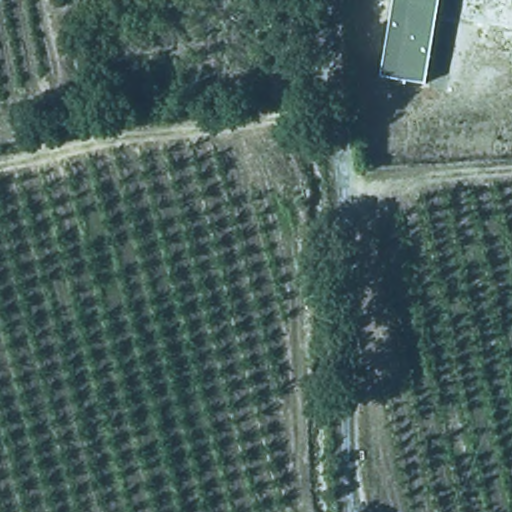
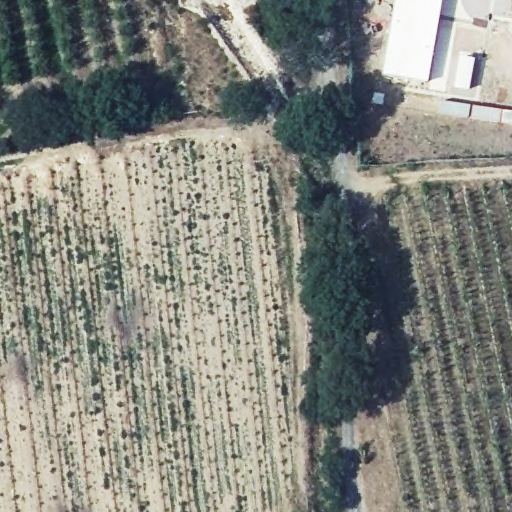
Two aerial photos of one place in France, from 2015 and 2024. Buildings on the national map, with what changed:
unchanged [(427,84),(380,77),(393,0),(441,0),(427,84)]

